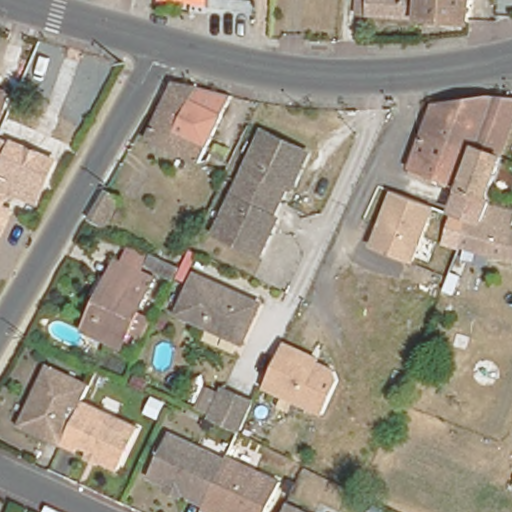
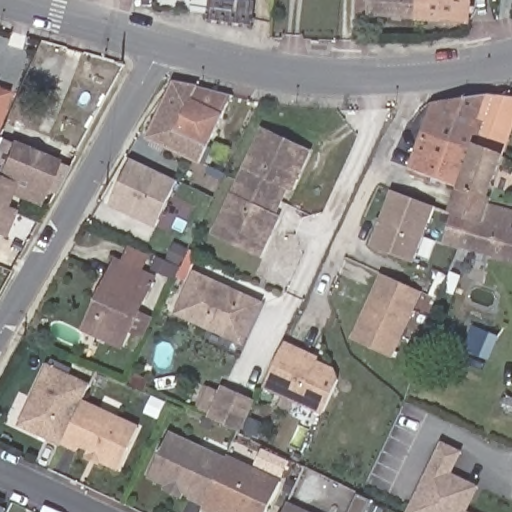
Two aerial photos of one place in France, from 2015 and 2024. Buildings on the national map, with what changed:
unchanged [(422,0),(421,12),(370,8),(357,7),(357,0),(422,0)]
unchanged [(421,12),(422,0),(468,0),(467,14),(421,12)]
unchanged [(177,124),(182,129),(199,142),(189,159),(147,135),(152,125),(155,122),(179,79),(196,89),(194,93),(177,124)]
unchanged [(10,88),(6,100),(0,118),(0,85),(7,87),(10,88)]
unchanged [(431,119),(442,94),(494,90),(512,92),(512,124),(502,146),(431,119)]
unchanged [(231,103),(207,147),(199,142),(182,129),(177,124),(194,93),(231,103)]
demolished [(63,136),(39,200),(0,185),(0,145),(12,118),(63,136)]
unchanged [(431,119),(502,146),(486,186),(463,179),(412,158),(431,119)]
unchanged [(262,127),(308,148),(290,183),(286,180),(278,196),(239,177),(262,127)]
new [(57,159),(38,205),(10,195),(7,205),(16,210),(4,237),(0,236),(0,136),(10,139),(57,159)]
demolished [(113,163),(116,159),(136,170),(102,231),(80,219),(113,163)]
new [(156,229),(108,207),(131,159),(177,182),(156,229)]
unchanged [(278,196),(273,207),(275,214),(258,247),(215,225),(239,177),(278,196)]
unchanged [(481,219),(463,218),(450,213),(463,179),(486,186),(495,189),(488,204),(481,219)]
unchanged [(415,265),(372,250),(395,189),(438,206),(415,265)]
unchanged [(463,218),(481,219),(488,204),(512,209),(512,264),(457,248),(463,218)]
unchanged [(79,329),(96,297),(101,300),(120,263),(126,249),(157,268),(152,279),(117,347),(79,329)]
unchanged [(257,299),(240,337),(179,307),(197,269),(257,299)]
new [(392,359),(351,340),(381,273),(423,292),(392,359)]
unchanged [(325,419),(266,392),(286,342),(338,367),(342,381),(325,419)]
unchanged [(54,439),(15,421),(40,369),(80,388),(72,403),(54,439)]
unchanged [(251,399),(238,426),(209,411),(221,385),(251,399)]
unchanged [(72,403),(131,430),(114,467),(97,459),(100,454),(87,449),(74,443),(72,447),(54,439),(72,403)]
unchanged [(177,487),(164,482),(146,472),(162,437),(217,463),(199,501),(177,487)]
new [(440,442),(462,452),(452,473),(480,486),(467,511),(469,512),(407,512),(440,442)]
unchanged [(220,457),(276,483),(262,512),(221,512),(216,509),(214,512),(212,512),(197,505),(199,501),(217,463),(220,457)]
unchanged [(300,512),(283,512),(287,506),(300,512)]

